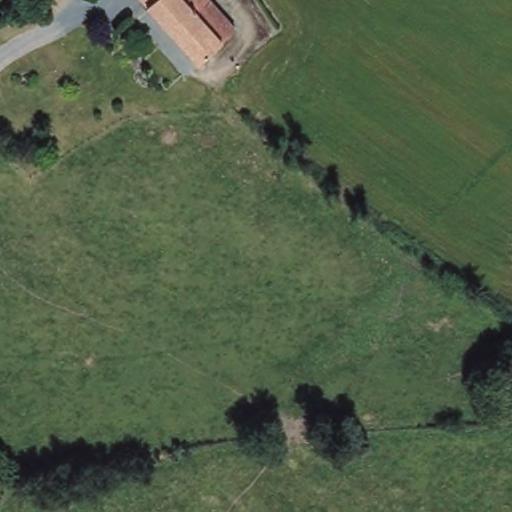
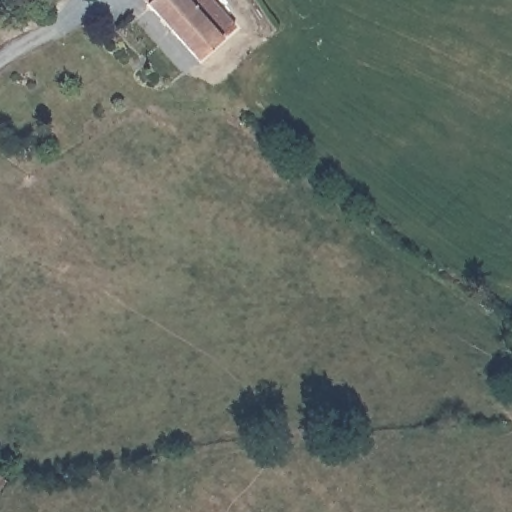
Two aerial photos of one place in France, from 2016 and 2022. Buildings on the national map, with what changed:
unchanged [(147,0),(213,0),(235,27),(199,58),(147,0)]

